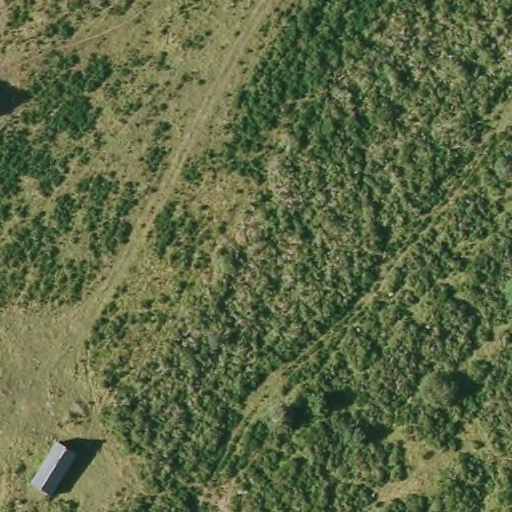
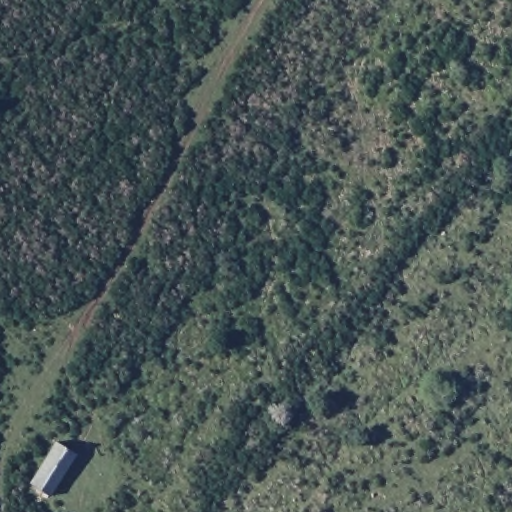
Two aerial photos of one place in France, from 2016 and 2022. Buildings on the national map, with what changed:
unchanged [(71,451),(46,493),(26,481),(51,440),(71,451)]

